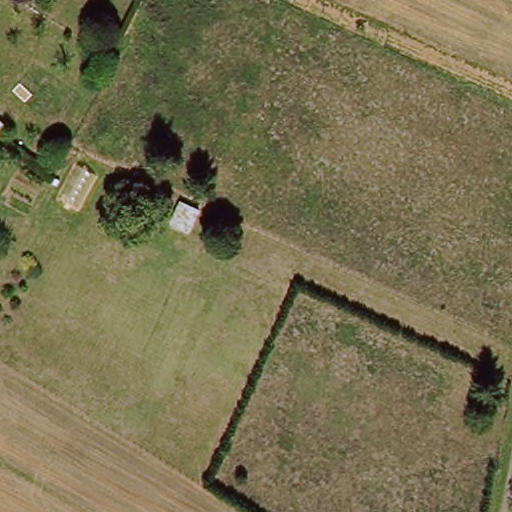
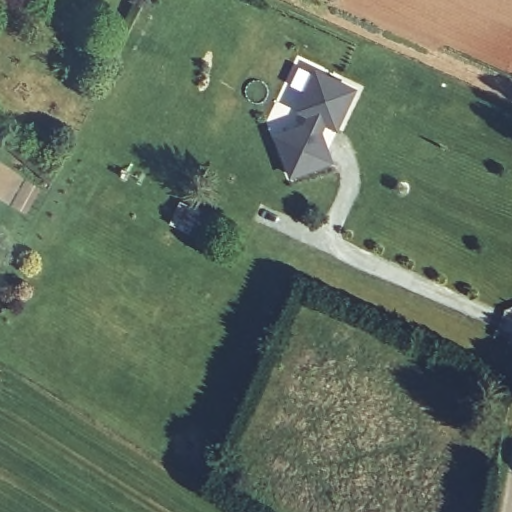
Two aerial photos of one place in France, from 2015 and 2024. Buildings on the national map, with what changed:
new [(340,131),(327,125),(325,131),(337,162),(291,178),(275,133),(302,124),(308,117),(297,112),(315,70),(358,89),(340,131)]
unchanged [(201,209),(190,230),(169,220),(179,197),(201,209)]

